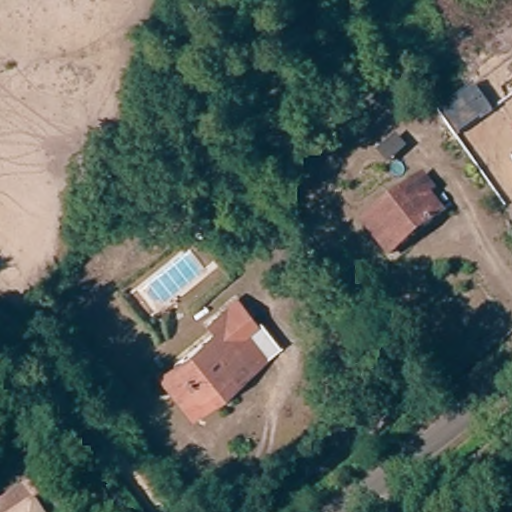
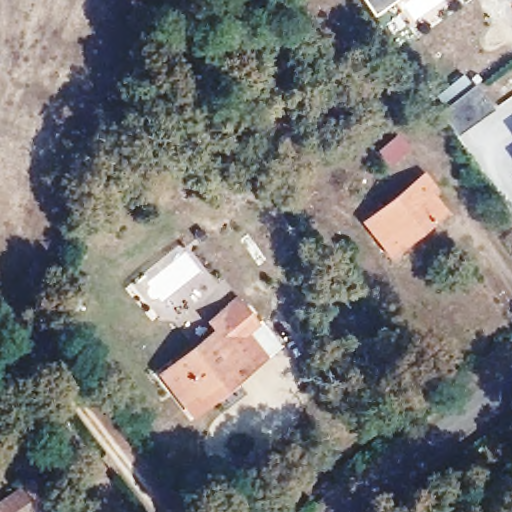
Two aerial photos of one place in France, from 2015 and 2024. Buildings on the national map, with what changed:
new [(372,16),(361,0),(396,0),(372,16)]
unchanged [(492,111),(457,136),(438,111),(474,84),(492,111)]
unchanged [(512,130),(512,131),(511,130),(512,130)]
unchanged [(408,149),(388,167),(376,150),(396,134),(408,149)]
unchanged [(387,253),(362,219),(422,174),(431,188),(423,194),(438,216),(387,253)]
unchanged [(196,415),(175,386),(164,371),(176,362),(224,327),(219,320),(242,302),(264,332),(257,337),(271,357),(238,382),(216,399),(196,415)]
unchanged [(16,512),(24,506),(28,512),(16,512)]

